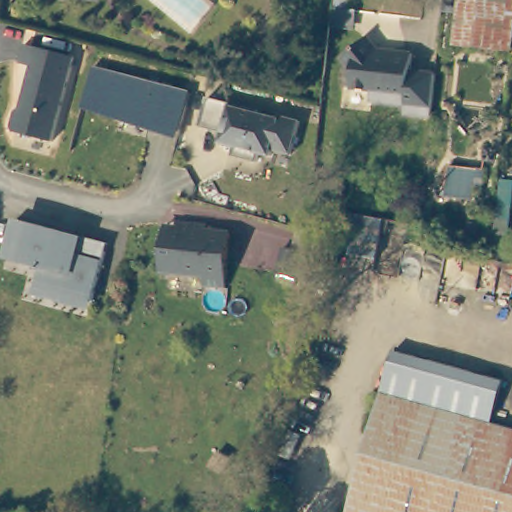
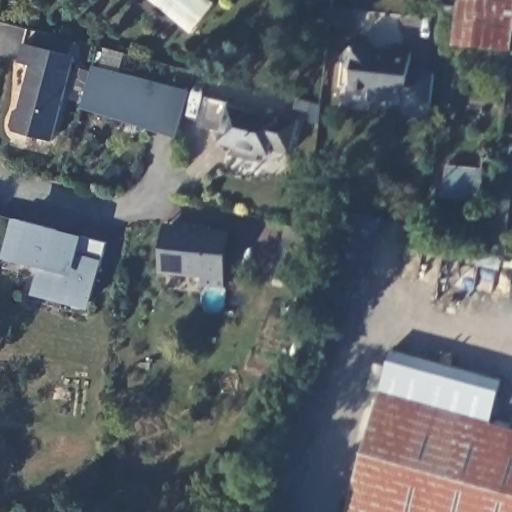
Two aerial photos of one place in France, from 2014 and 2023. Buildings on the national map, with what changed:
unchanged [(332,0),(348,0),(346,20),(330,19),(332,0)]
unchanged [(457,0),(512,0),(512,31),(510,52),(452,45),(457,0)]
unchanged [(348,22),(346,40),(326,38),(328,20),(348,22)]
unchanged [(365,39),(379,56),(392,58),(393,52),(412,55),(410,72),(435,75),(433,98),(430,118),(405,115),(405,107),(370,103),(371,92),(351,90),(353,72),(342,57),(365,39)]
unchanged [(10,133),(7,129),(11,113),(16,110),(26,68),(14,65),(19,46),(70,58),(50,143),(10,133)]
unchanged [(180,137),(83,107),(94,65),(190,89),(180,137)]
unchanged [(204,98),(254,111),(253,114),(275,119),(275,116),(295,122),(286,155),(267,150),(266,156),(255,153),(252,163),(229,156),(231,147),(216,143),(219,133),(196,127),(204,98)]
unchanged [(483,170),(480,195),(472,194),(470,202),(443,199),(448,165),(483,170)]
unchanged [(512,181),(512,202),(508,235),(495,233),(501,180),(512,181)]
unchanged [(380,232),(375,258),(348,253),(355,215),(386,221),(387,221),(385,232),(380,232)]
unchanged [(57,229),(51,254),(75,260),(81,235),(106,241),(91,301),(35,287),(39,267),(5,258),(14,218),(57,229)]
unchanged [(205,222),(205,227),(229,229),(224,285),(202,283),(203,273),(159,269),(160,251),(165,252),(168,223),(190,225),(190,220),(205,222)]
unchanged [(295,274),(276,269),(282,244),(301,249),(295,274)]
unchanged [(497,381),(485,424),(375,393),(387,350),(497,381)]
unchanged [(485,424),(512,431),(512,512),(341,512),(375,393),(485,424)]

